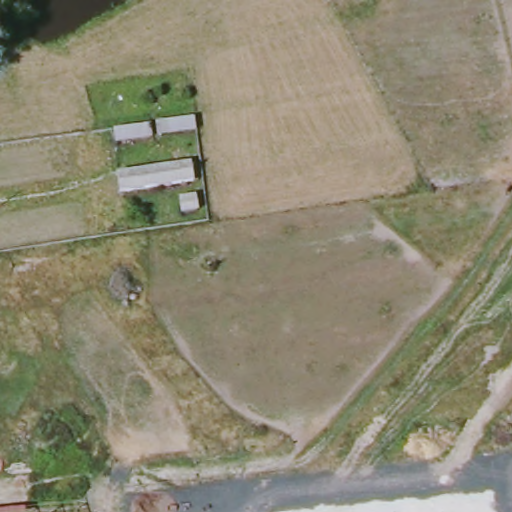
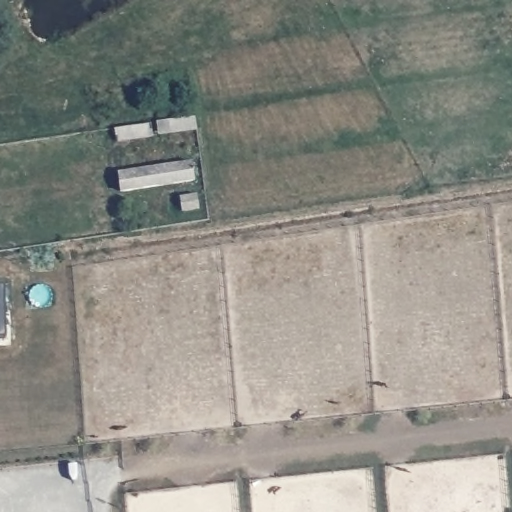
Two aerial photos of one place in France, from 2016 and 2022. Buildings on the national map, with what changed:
unchanged [(196,130),(161,136),(160,122),(195,117),(196,130)]
unchanged [(152,124),(153,137),(118,143),(116,129),(152,124)]
unchanged [(195,181),(120,192),(117,174),(191,163),(195,181)]
unchanged [(184,213),(181,197),(196,195),(198,210),(184,213)]
new [(0,336),(0,285),(5,285),(7,335),(0,336)]

